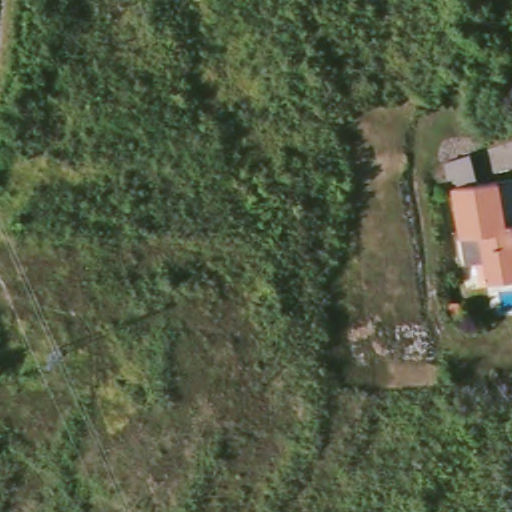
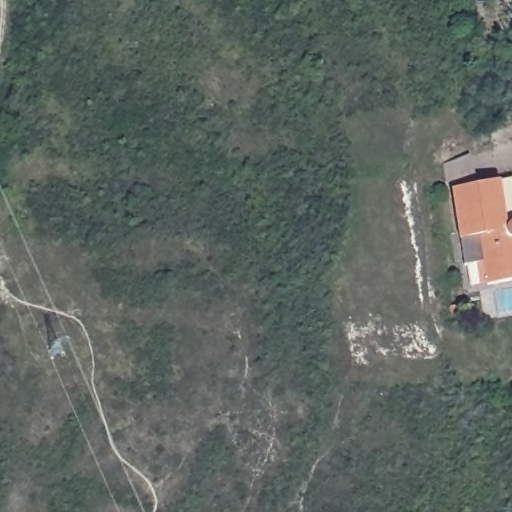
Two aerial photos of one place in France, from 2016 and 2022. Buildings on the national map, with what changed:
unchanged [(487,286),(483,264),(463,267),(450,191),(512,179),(512,281),(487,286)]

